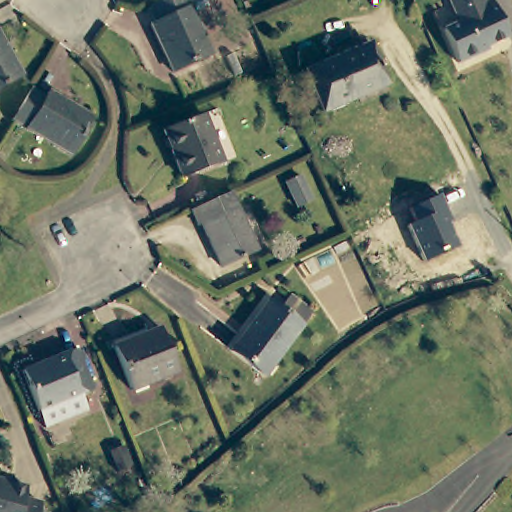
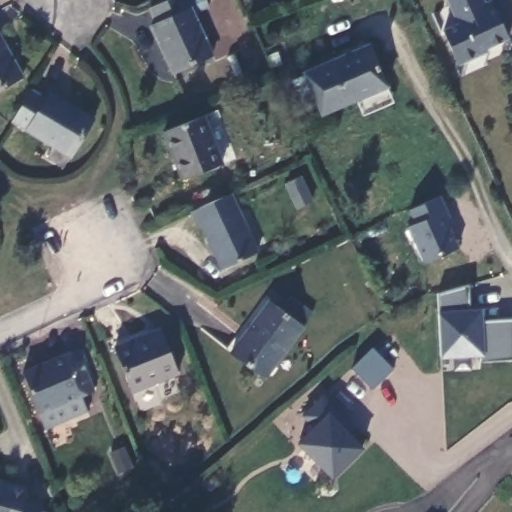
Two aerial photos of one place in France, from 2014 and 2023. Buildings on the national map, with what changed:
unchanged [(148,24),(156,21),(150,6),(163,0),(185,0),(210,55),(170,72),(148,24)]
unchanged [(443,29),(458,22),(462,11),(451,7),(448,0),(485,0),(486,2),(491,0),(508,37),(486,47),(483,52),(458,63),(443,29)]
unchanged [(0,91),(0,33),(25,77),(0,91)]
unchanged [(323,112),(306,72),(370,46),(387,85),(323,112)]
unchanged [(46,91),(91,118),(69,155),(10,119),(15,112),(29,88),(43,97),(46,91)]
unchanged [(178,178),(160,131),(200,115),(219,162),(178,178)]
unchanged [(200,224),(194,209),(231,192),(257,250),(222,266),(202,223),(200,224)]
unchanged [(414,222),(408,209),(440,196),(452,222),(447,225),(457,247),(422,262),(405,226),(414,222)]
new [(470,285),(468,301),(470,308),(483,307),(483,321),(512,320),(512,358),(480,360),(480,355),(441,357),(440,311),(438,294),(470,285)]
unchanged [(270,299),(303,324),(264,376),(231,350),(270,299)]
unchanged [(115,347),(162,327),(178,372),(131,390),(115,347)]
unchanged [(25,365),(78,341),(95,380),(82,385),(90,401),(47,418),(41,402),(25,365)]
new [(377,348),(397,370),(376,390),(355,369),(377,348)]
new [(349,433),(363,448),(332,478),(296,442),(313,427),(303,417),(324,397),(355,427),(349,433)]
unchanged [(113,455),(127,449),(135,468),(120,473),(113,455)]
unchanged [(20,512),(0,512),(0,478),(26,485),(20,512)]

